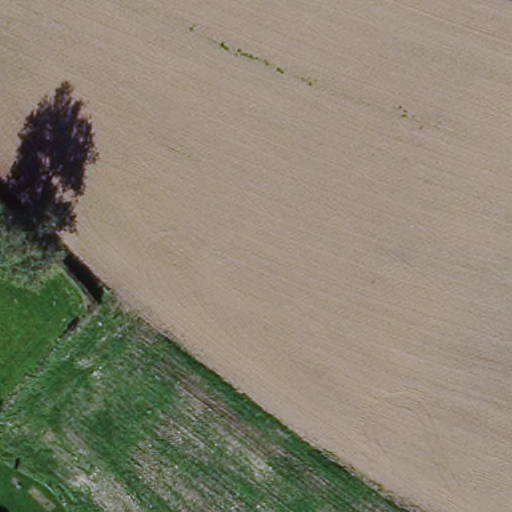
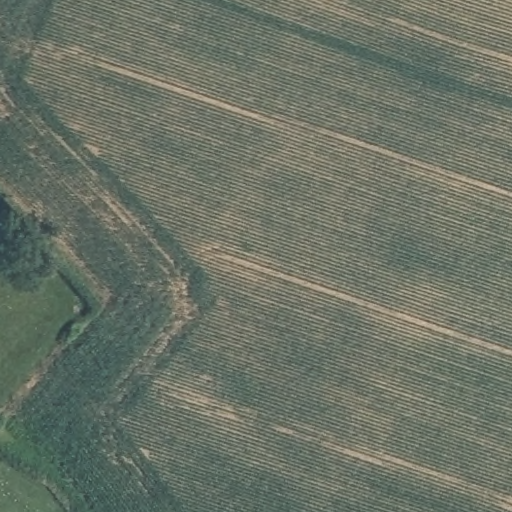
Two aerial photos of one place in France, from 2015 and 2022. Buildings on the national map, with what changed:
[]

